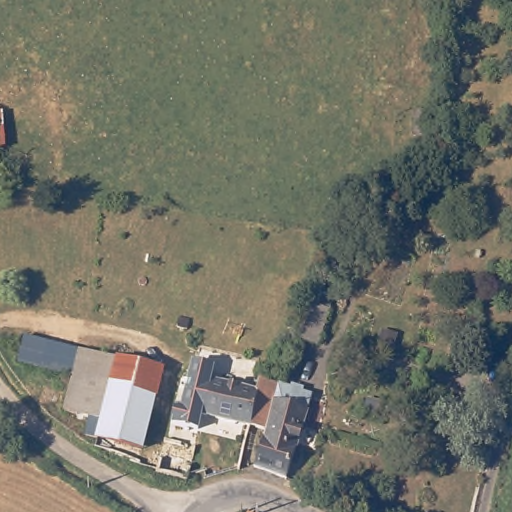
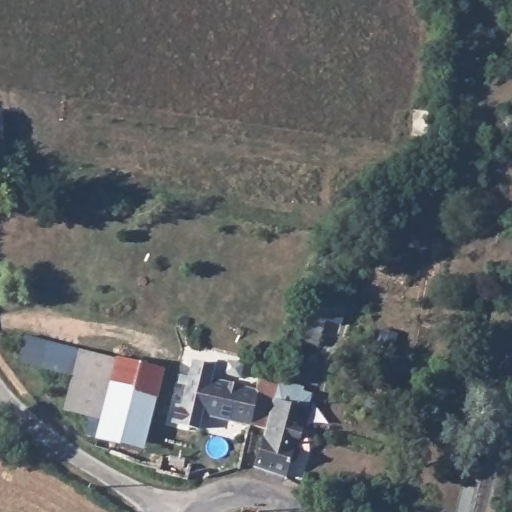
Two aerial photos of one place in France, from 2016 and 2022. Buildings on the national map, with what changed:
unchanged [(0,148),(0,110),(11,109),(8,147),(0,148)]
unchanged [(82,434),(87,417),(66,412),(73,384),(28,374),(35,340),(118,362),(100,439),(82,434)]
unchanged [(118,362),(182,377),(172,422),(164,455),(100,439),(118,362)]
unchanged [(182,412),(193,366),(213,371),(210,382),(259,392),(252,428),(182,412)]
unchanged [(259,392),(261,381),(280,385),(277,400),(309,412),(289,479),(257,469),(267,432),(252,428),(259,392)]
unchanged [(164,455),(172,422),(202,430),(188,481),(127,465),(127,462),(114,459),(116,454),(98,449),(100,439),(164,455)]

